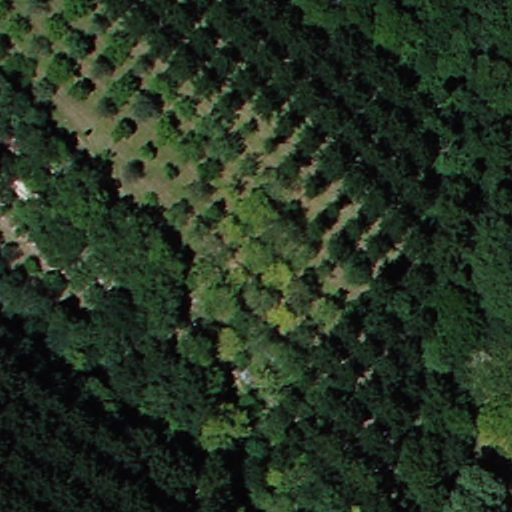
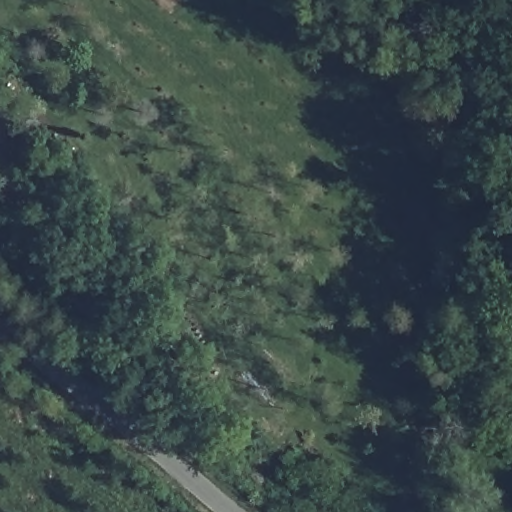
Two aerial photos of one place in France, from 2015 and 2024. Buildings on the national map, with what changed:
unchanged [(51,188),(31,175),(38,164),(57,177),(51,188)]

